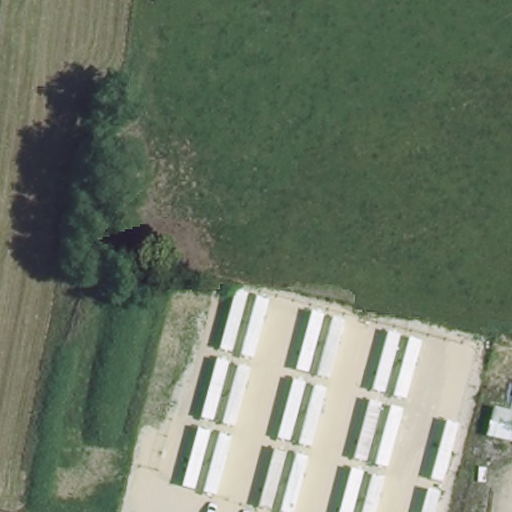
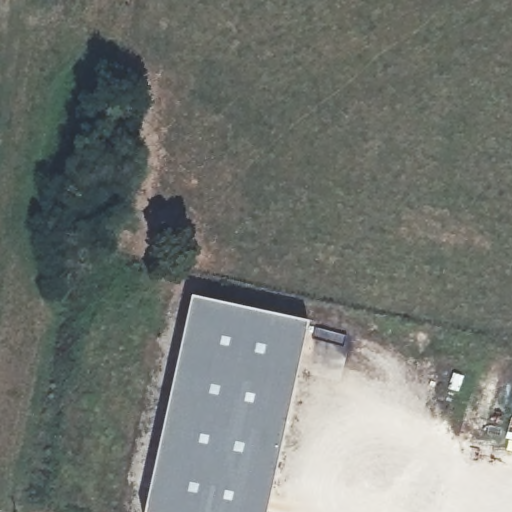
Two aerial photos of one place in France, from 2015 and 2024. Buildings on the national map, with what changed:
new [(267,512),(145,512),(190,295),(307,320),(267,512)]

